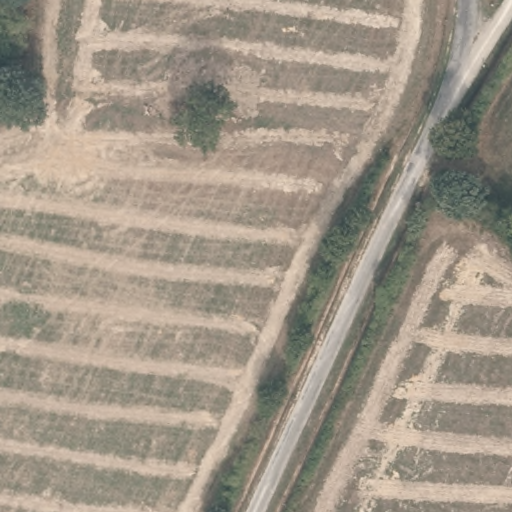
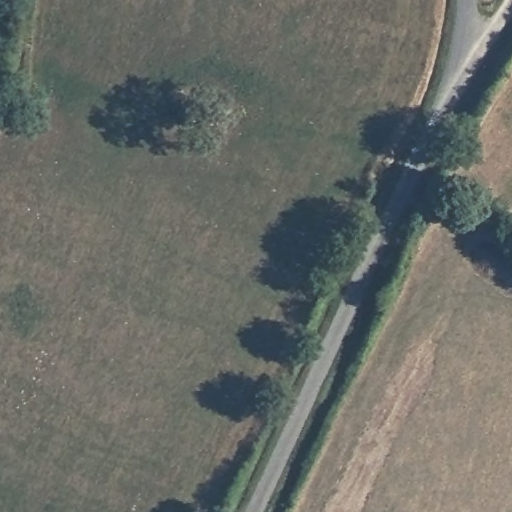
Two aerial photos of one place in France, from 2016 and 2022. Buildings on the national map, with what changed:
[]

